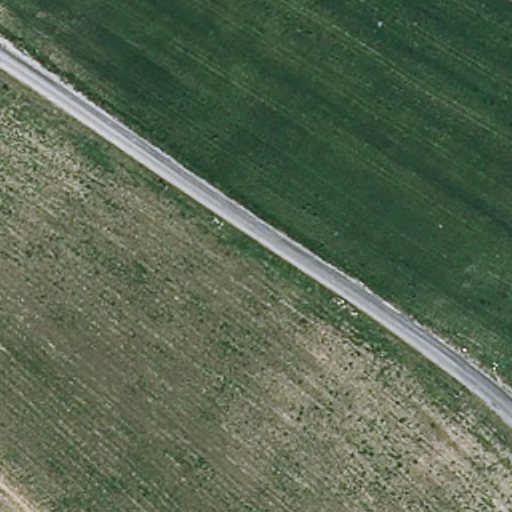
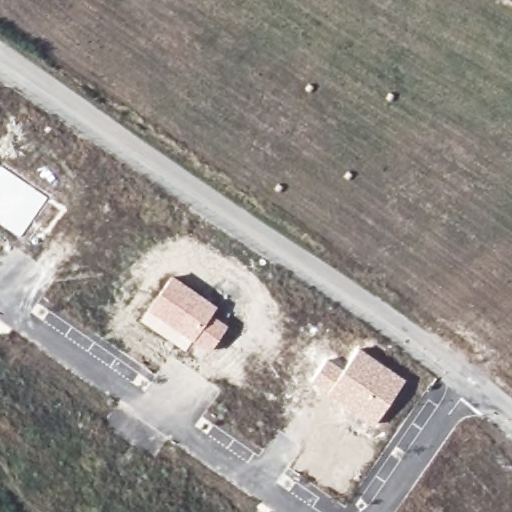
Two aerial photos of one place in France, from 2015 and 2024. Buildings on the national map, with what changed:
new [(20,237),(0,224),(0,168),(2,166),(47,197),(20,237)]
new [(211,315),(228,326),(212,352),(194,341),(149,310),(173,276),(216,306),(211,315)]
new [(405,380),(374,425),(327,393),(312,382),(328,358),(343,370),(358,347),(405,380)]

